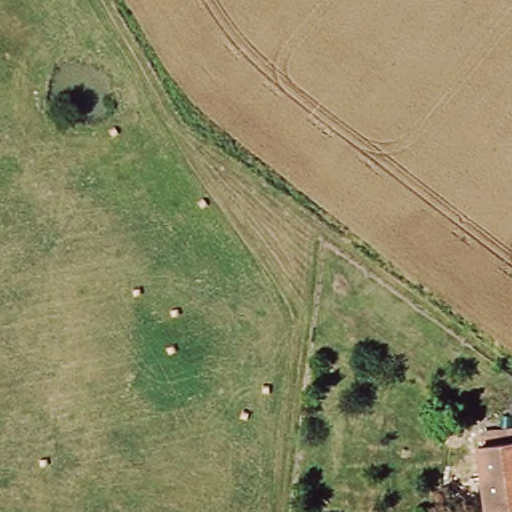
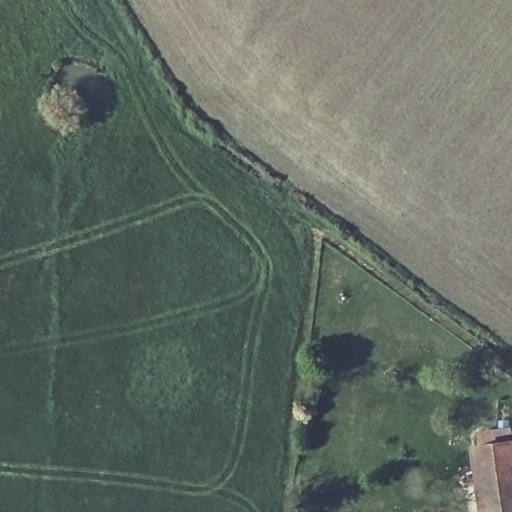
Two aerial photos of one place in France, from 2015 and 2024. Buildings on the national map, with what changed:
unchanged [(512,441),(512,512),(487,512),(481,444),(512,441)]

